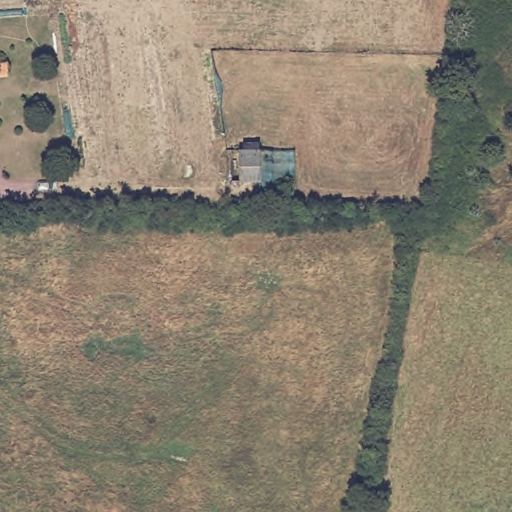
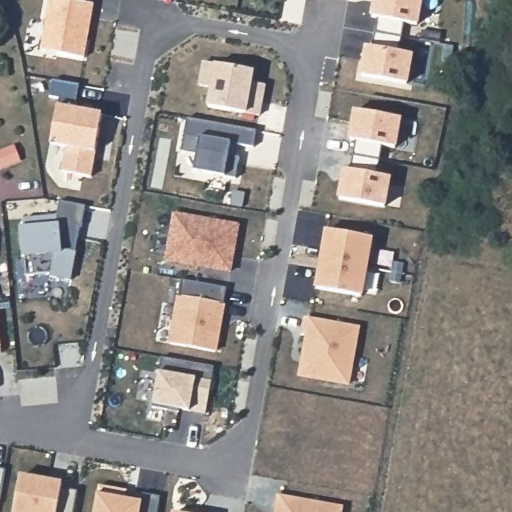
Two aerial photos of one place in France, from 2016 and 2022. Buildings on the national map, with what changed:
new [(91,0),(90,4),(94,4),(84,58),(41,50),(50,0),(91,0)]
new [(421,0),(417,25),(404,22),(401,37),(375,32),(378,17),(373,16),(375,0),(421,0)]
new [(367,47),(372,47),(375,32),(401,37),(399,52),(412,55),(407,84),(362,76),(367,47)]
unchanged [(9,74),(0,75),(0,68),(2,67),(2,60),(9,60),(9,74)]
new [(259,98),(262,99),(259,116),(209,107),(212,87),(200,85),(204,62),(253,71),(252,83),(261,85),(259,98)]
new [(53,80),(79,84),(75,110),(102,115),(91,177),(62,172),(66,147),(51,145),(59,99),(50,97),(53,80)]
new [(356,110),(400,119),(395,148),(382,145),(379,160),(352,155),(354,141),(351,140),(356,110)]
new [(257,130),(254,147),(230,144),(229,156),(239,157),(235,179),(194,171),(197,155),(180,152),(187,117),(257,130)]
demolished [(239,180),(239,149),(260,149),(261,180),(239,180)]
new [(345,169),(349,170),(352,155),(379,160),(377,175),(389,177),(384,207),(340,199),(345,169)]
new [(24,229),(24,219),(56,216),(59,201),(85,206),(81,228),(80,227),(71,251),(75,252),(74,261),(70,261),(70,280),(50,276),(50,274),(26,276),(25,257),(23,257),(20,230),(24,229)]
new [(174,214),(239,225),(230,271),(166,260),(174,214)]
new [(327,230),(372,238),(361,296),(317,288),(327,230)]
new [(182,280),(227,287),(215,351),(170,343),(182,280)]
new [(307,336),(301,335),(304,318),(359,328),(349,384),(300,375),(307,336)]
new [(0,353),(0,341),(1,352),(0,353)]
new [(161,357),(214,366),(205,413),(179,408),(179,412),(153,407),(161,357)]
new [(0,499),(0,468),(5,469),(0,499)]
new [(20,476),(62,485),(61,488),(78,491),(74,512),(13,512),(20,476)]
new [(99,485),(126,490),(125,499),(141,501),(143,493),(161,497),(159,512),(94,512),(99,485)]
new [(277,496),(341,507),(340,512),(274,512),(277,496)]

